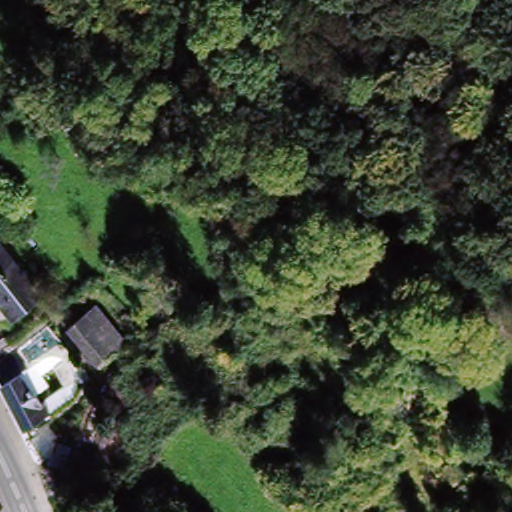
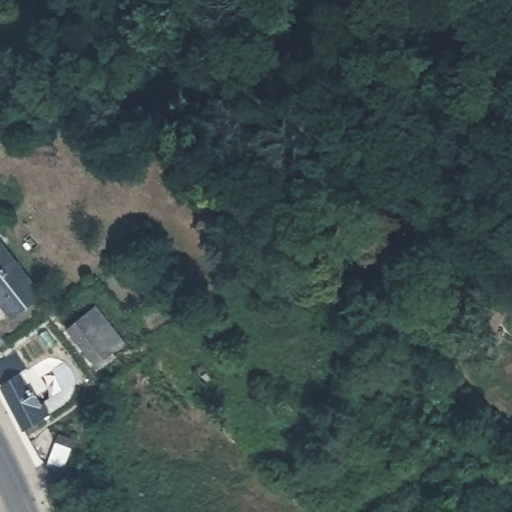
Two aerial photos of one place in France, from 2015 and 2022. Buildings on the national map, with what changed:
unchanged [(76,41),(63,51),(40,22),(53,12),(76,41)]
unchanged [(90,149),(80,157),(71,146),(82,137),(90,149)]
unchanged [(0,307),(0,247),(38,297),(9,318),(0,307)]
unchanged [(116,349),(111,353),(115,357),(108,363),(104,358),(94,366),(66,331),(81,320),(80,318),(94,307),(109,326),(108,327),(121,345),(116,349)]
unchanged [(9,340),(0,347),(0,332),(2,331),(9,340)]
unchanged [(31,367),(39,363),(44,361),(50,359),(55,359),(59,360),(64,362),(66,365),(70,367),(73,371),(75,376),(76,382),(76,388),(74,393),(70,399),(64,404),(22,430),(13,412),(1,390),(0,387),(0,363),(16,354),(26,372),(31,367)]
unchanged [(46,466),(53,443),(69,450),(61,472),(46,466)]

